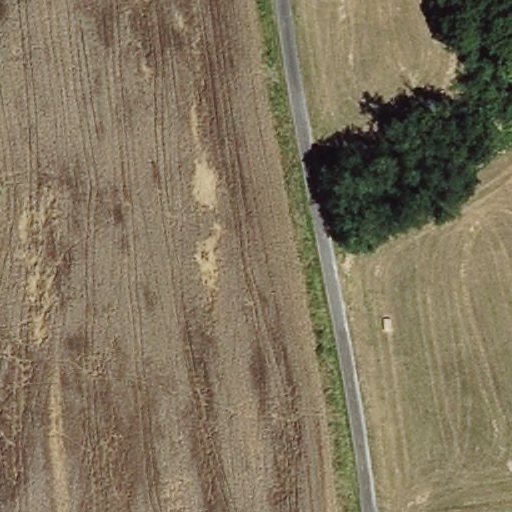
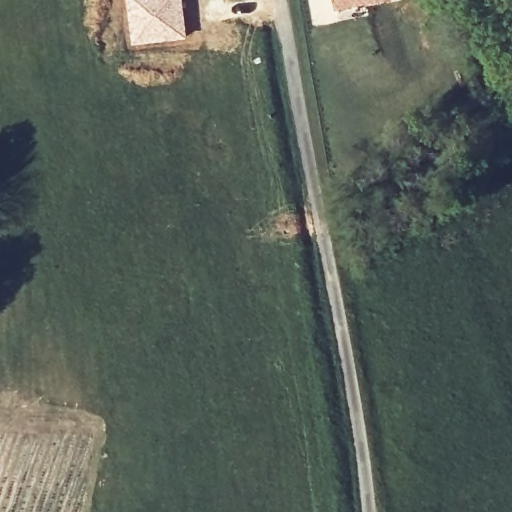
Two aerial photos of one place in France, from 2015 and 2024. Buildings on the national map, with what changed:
new [(131,45),(126,0),(184,0),(188,38),(131,45)]
new [(337,0),(377,0),(338,8),(337,0)]

